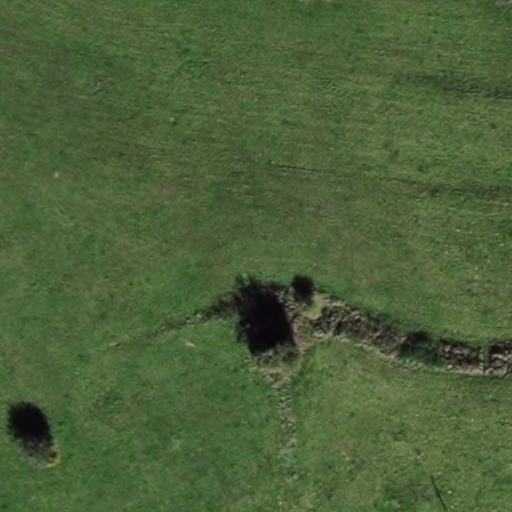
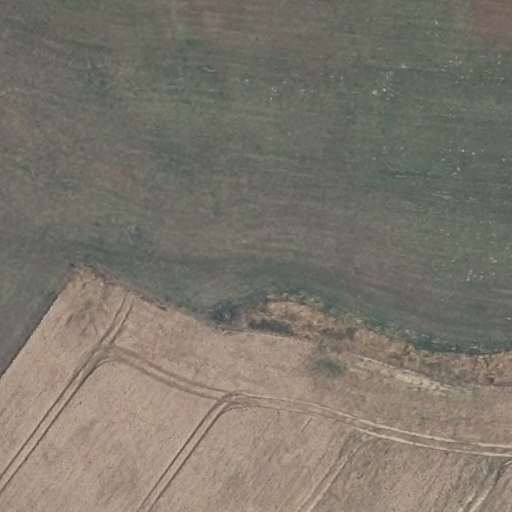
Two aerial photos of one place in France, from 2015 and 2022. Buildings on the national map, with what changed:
[]

